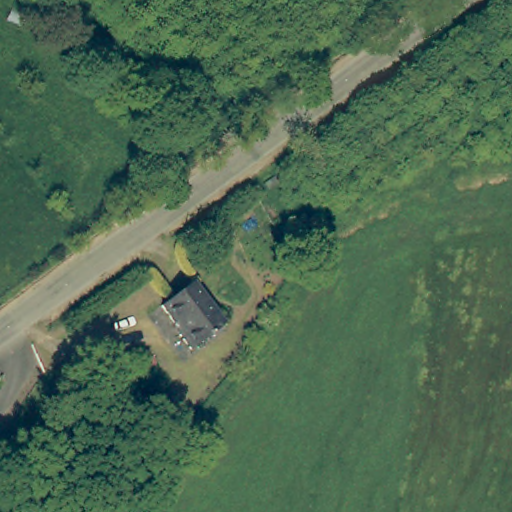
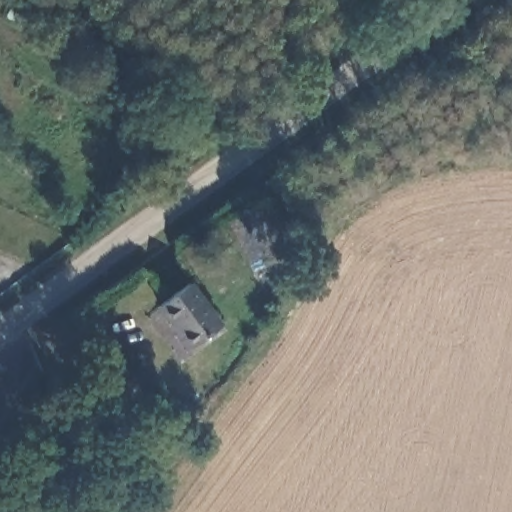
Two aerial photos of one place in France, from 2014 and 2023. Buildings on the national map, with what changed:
unchanged [(223,330),(188,352),(160,306),(195,282),(223,330)]

